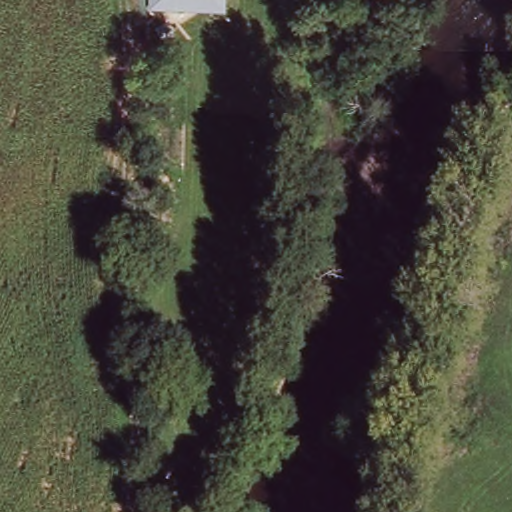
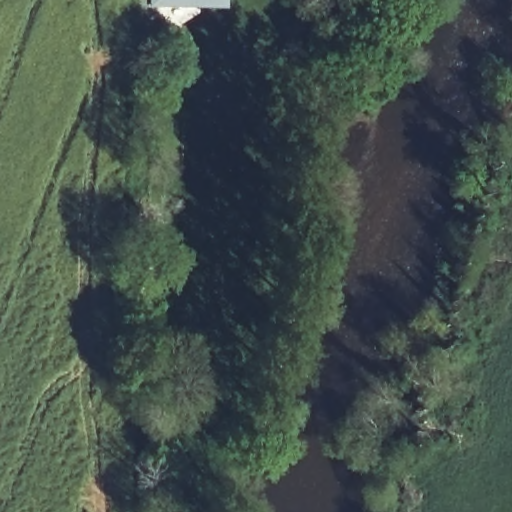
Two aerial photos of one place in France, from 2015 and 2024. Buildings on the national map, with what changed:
unchanged [(229,11),(151,10),(151,0),(229,0),(229,11)]

